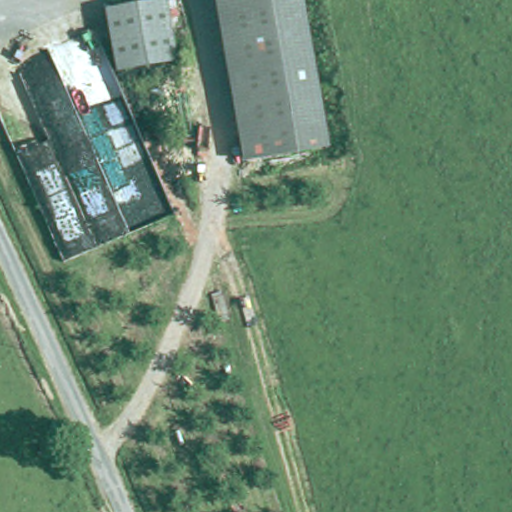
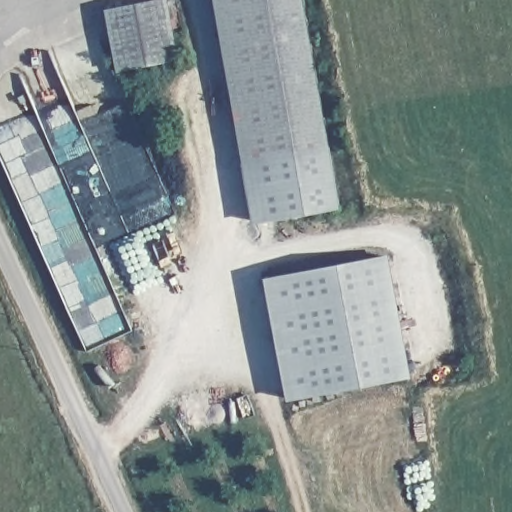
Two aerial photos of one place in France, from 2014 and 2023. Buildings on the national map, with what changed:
unchanged [(242,159),(215,0),(304,0),(329,143),(242,159)]
unchanged [(106,9),(170,6),(172,68),(109,70),(106,9)]
new [(253,223),(242,159),(329,143),(340,207),(253,223)]
new [(388,254),(410,376),(286,401),(265,277),(388,254)]

